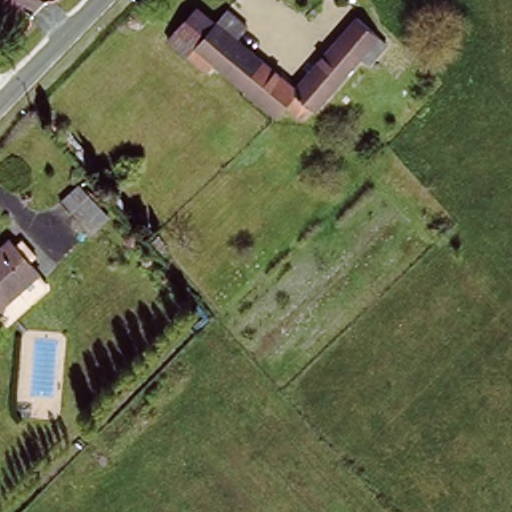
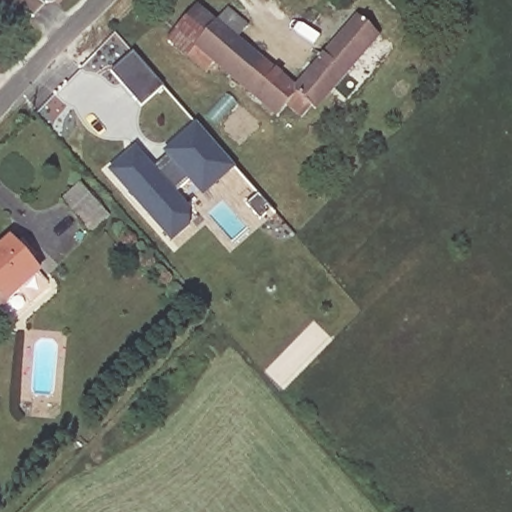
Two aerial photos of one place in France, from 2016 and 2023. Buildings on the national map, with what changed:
unchanged [(387,25),(382,30),(357,9),(364,2),(387,25)]
unchanged [(182,59),(192,47),(172,31),(193,6),(212,22),(225,6),(249,25),(235,41),(295,89),(354,22),(380,41),(323,105),(317,100),(310,110),(303,104),(298,110),(286,102),(273,114),(216,67),(205,77),(182,59)]
new [(142,107),(110,72),(134,52),(165,87),(142,107)]
new [(188,227),(171,242),(108,170),(134,147),(154,167),(166,157),(162,152),(195,122),(236,167),(202,197),(189,181),(176,192),(190,210),(188,227)]
unchanged [(89,231),(58,197),(79,178),(110,212),(89,231)]
unchanged [(7,239),(15,249),(22,242),(34,257),(27,262),(40,277),(0,314),(0,246),(7,239)]

